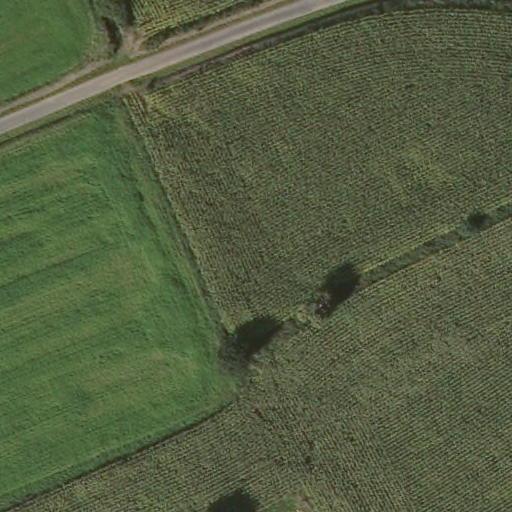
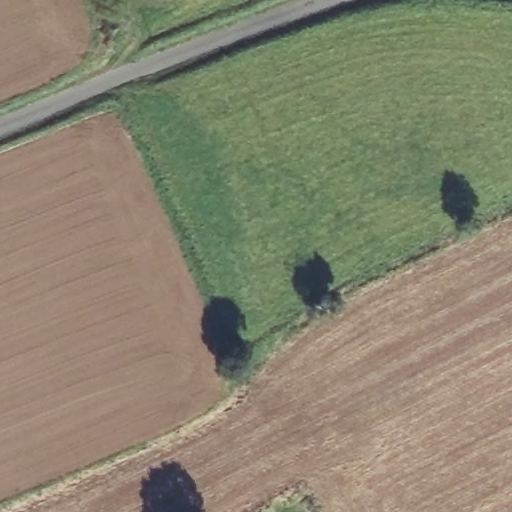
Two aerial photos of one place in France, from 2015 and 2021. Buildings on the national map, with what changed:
[]

